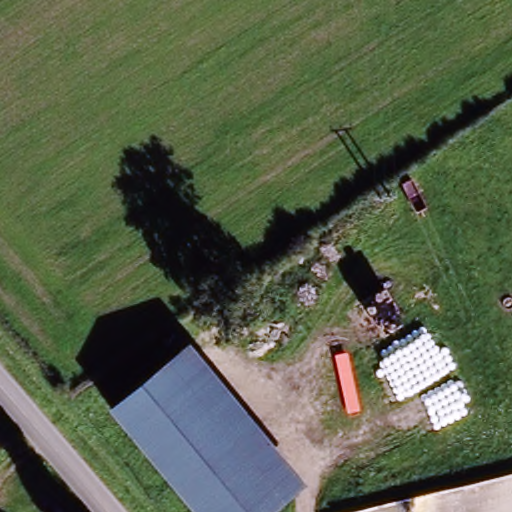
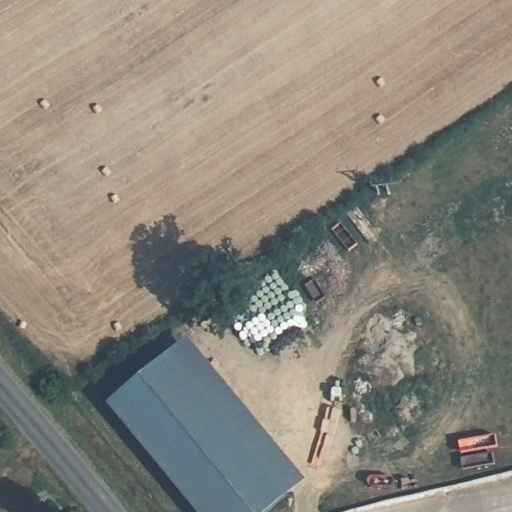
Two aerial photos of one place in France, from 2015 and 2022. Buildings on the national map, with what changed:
unchanged [(170,355),(286,492),(262,512),(197,512),(109,407),(170,355)]

